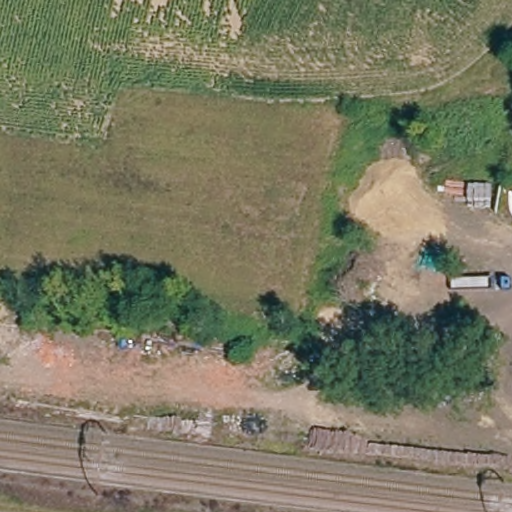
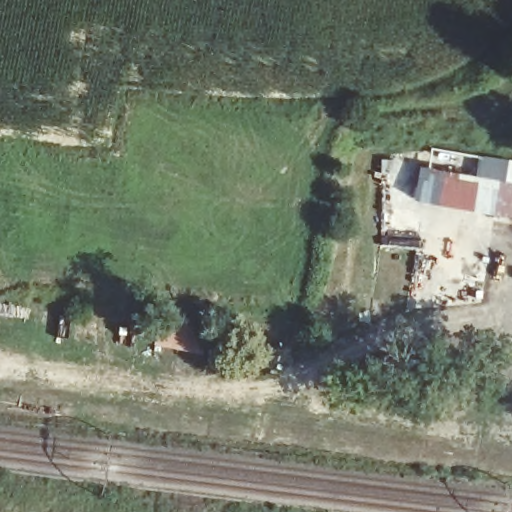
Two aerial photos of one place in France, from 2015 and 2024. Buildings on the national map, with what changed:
new [(494,215),(415,199),(421,164),(428,165),(431,147),(471,155),(471,159),(465,158),(463,171),(473,173),(477,155),(508,159),(512,160),(512,218),(494,215)]

